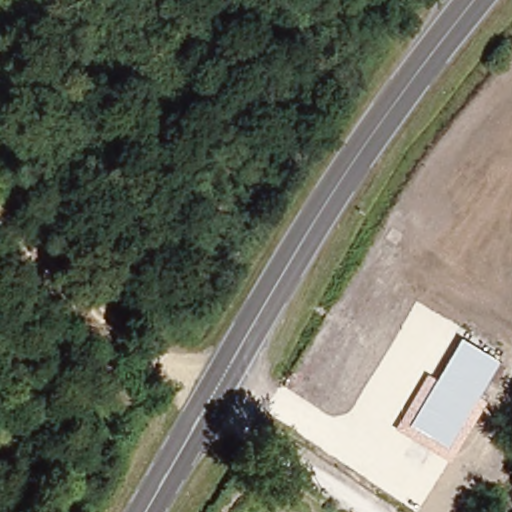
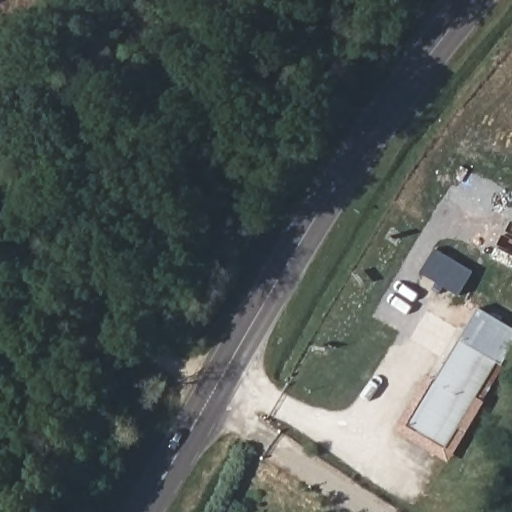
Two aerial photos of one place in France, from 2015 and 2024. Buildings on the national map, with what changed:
new [(422,272),(436,250),(473,273),(460,295),(422,272)]
new [(479,309),(512,327),(512,351),(503,367),(500,366),(502,363),(460,343),(479,309)]
unchanged [(455,341),(502,363),(480,412),(468,406),(447,452),(411,436),(455,341)]

